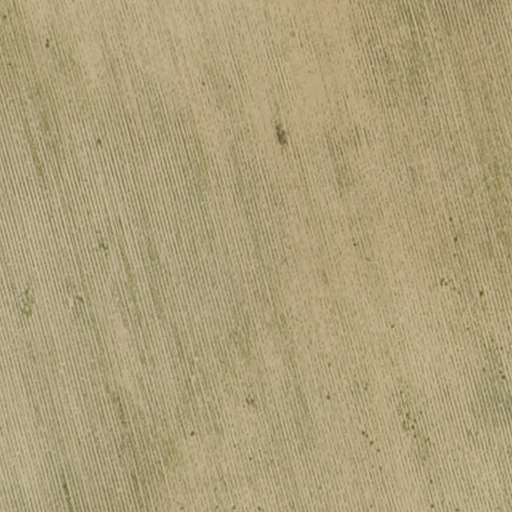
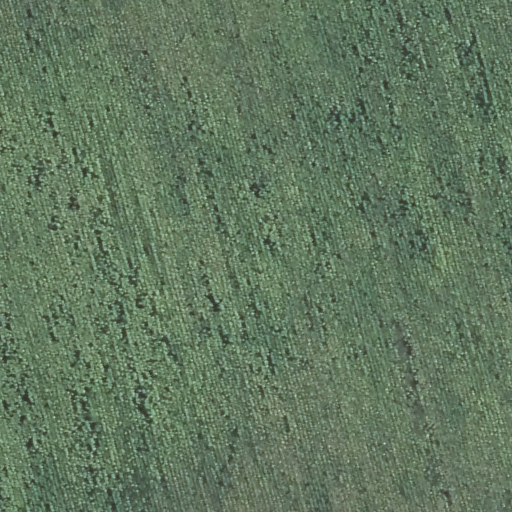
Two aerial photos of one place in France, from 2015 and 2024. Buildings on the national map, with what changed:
[]

